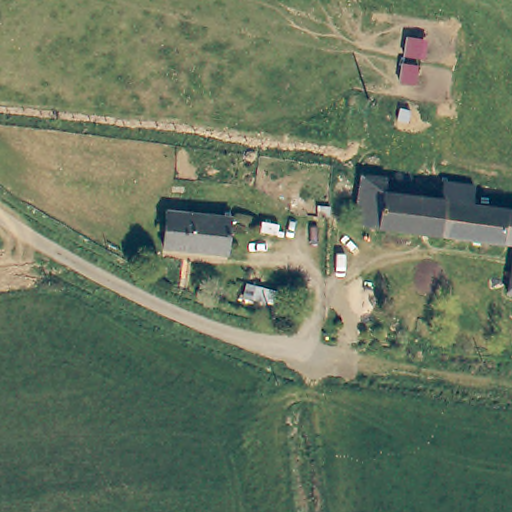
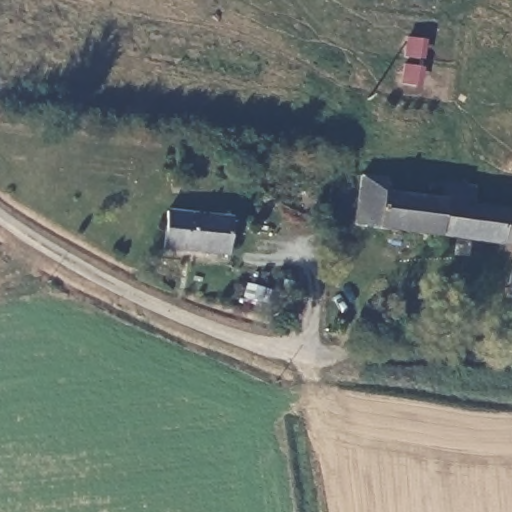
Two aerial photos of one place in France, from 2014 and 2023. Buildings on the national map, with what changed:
unchanged [(377,230),(351,226),(352,175),(382,179),(382,189),(377,230)]
unchanged [(442,197),(444,185),(474,190),(472,200),(498,203),(497,242),(492,242),(439,236),(437,236),(441,197),(442,197)]
unchanged [(382,189),(441,197),(437,236),(377,230),(382,189)]
unchanged [(512,245),(497,242),(498,203),(512,205),(512,245)]
unchanged [(235,215),(231,255),(166,245),(169,207),(235,215)]

